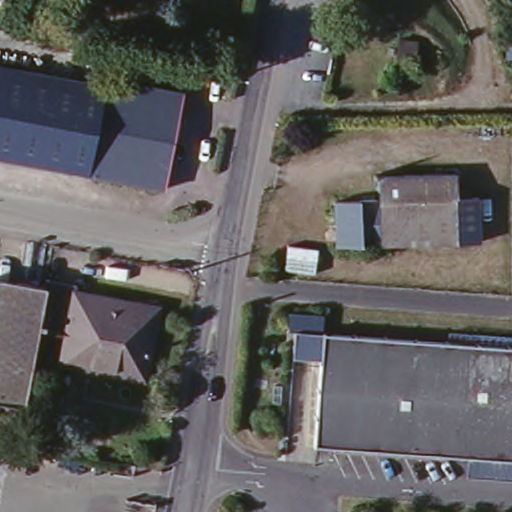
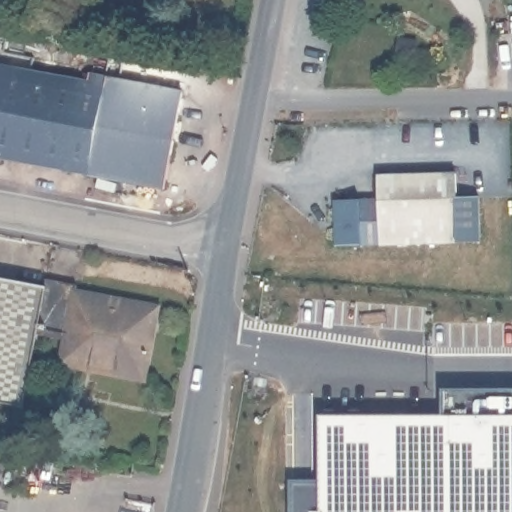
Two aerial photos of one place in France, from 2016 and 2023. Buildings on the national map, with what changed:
unchanged [(0,69),(82,86),(84,75),(177,94),(158,190),(0,160),(0,69)]
unchanged [(457,200),(458,245),(383,246),(382,199),(382,185),(382,176),(457,175),(458,184),(457,200)]
unchanged [(383,246),(338,246),(337,200),(382,199),(383,246)]
unchanged [(481,200),(481,244),(458,245),(457,200),(481,200)]
unchanged [(40,293),(32,336),(17,414),(0,411),(0,286),(38,293),(40,293)]
unchanged [(40,293),(38,293),(39,286),(70,292),(68,300),(150,316),(136,387),(111,381),(114,367),(58,357),(61,342),(32,336),(40,293)]
demolished [(512,345),(512,459),(476,456),(317,443),(325,350),(297,347),(299,327),(512,345)]
new [(310,512),(314,420),(384,418),(386,383),(512,386),(512,512),(310,512)]

